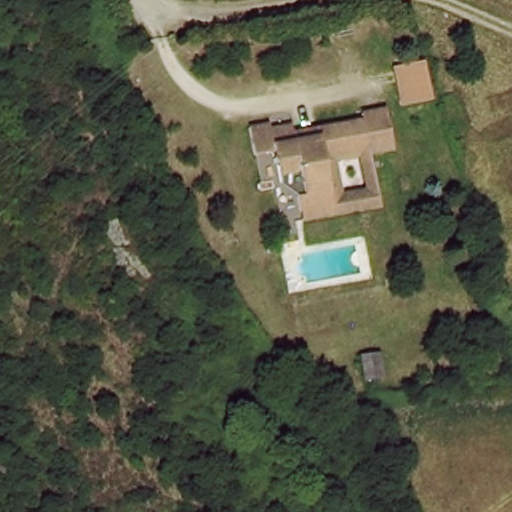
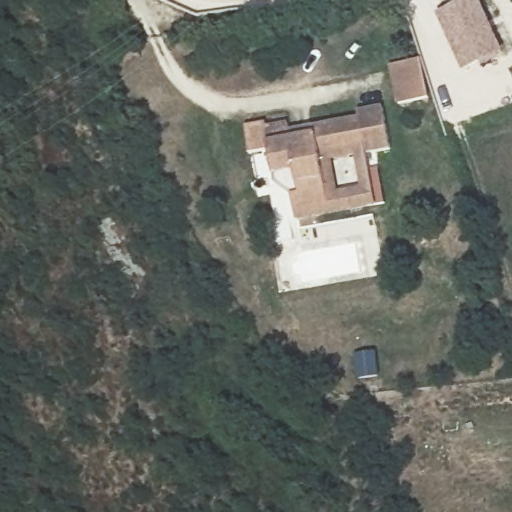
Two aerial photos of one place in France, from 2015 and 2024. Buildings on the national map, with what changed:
new [(501,60),(484,68),(483,64),(463,72),(438,14),(471,0),(480,0),(505,54),(499,57),(501,60)]
unchanged [(398,106),(389,66),(420,59),(430,100),(398,106)]
unchanged [(293,137),(317,133),(316,125),(360,115),(359,110),(388,105),(394,148),(368,154),(367,148),(366,141),(321,150),(321,153),(329,207),(295,212),(290,180),(276,182),(272,150),(249,154),(246,125),(269,122),(269,126),(291,123),(293,137)]
unchanged [(331,214),(329,207),(321,153),(321,150),(366,141),(367,148),(368,154),(378,206),(331,214)]

